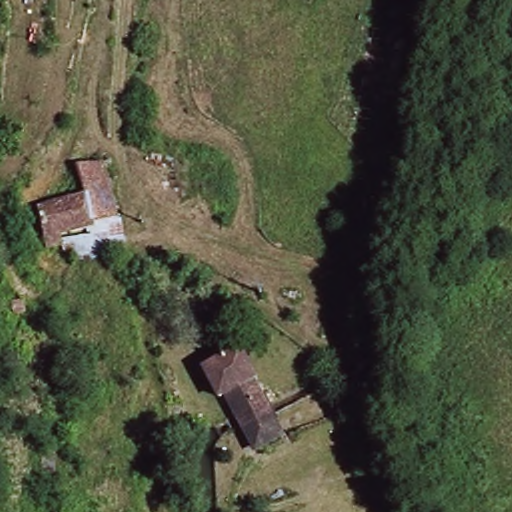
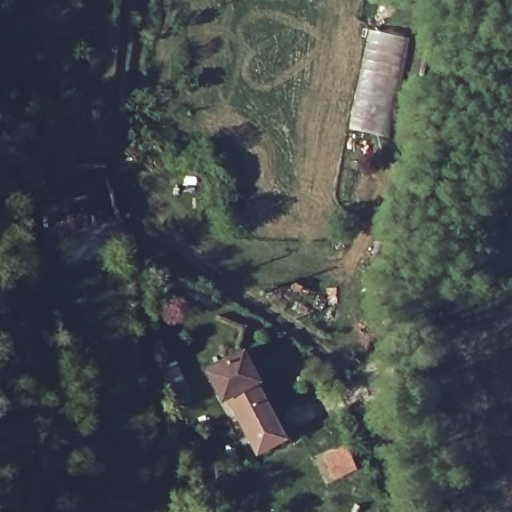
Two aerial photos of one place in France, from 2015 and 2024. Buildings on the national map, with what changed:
new [(367,29),(408,39),(388,138),(347,129),(367,29)]
unchanged [(114,216),(86,220),(87,227),(56,234),(59,244),(41,247),(33,203),(42,200),(77,194),(71,166),(103,159),(114,216)]
unchanged [(88,236),(92,262),(74,264),(69,240),(88,236)]
unchanged [(261,409),(232,421),(224,403),(221,404),(210,374),(250,359),(261,390),(254,393),(261,409)]
unchanged [(276,443),(247,454),(238,434),(232,421),(261,409),(276,443)]

